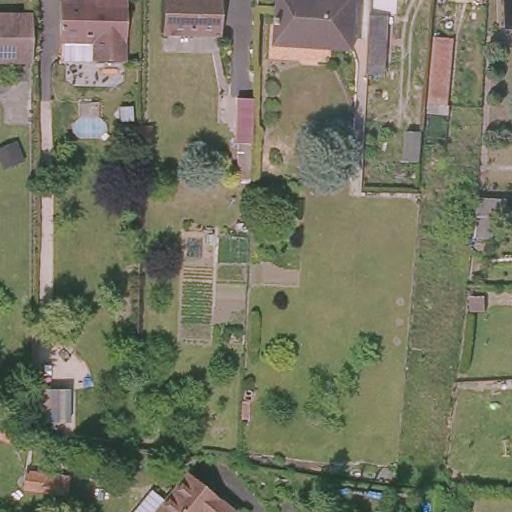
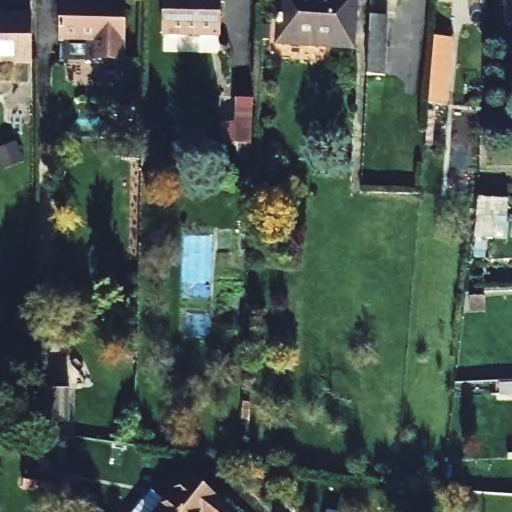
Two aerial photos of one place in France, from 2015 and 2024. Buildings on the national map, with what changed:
unchanged [(60,59),(61,0),(125,0),(125,59),(60,59)]
unchanged [(162,35),(162,0),(217,0),(217,37),(162,35)]
unchanged [(276,40),(282,0),(358,0),(352,50),(276,40)]
unchanged [(511,25),(511,0),(512,0),(512,24),(511,25)]
unchanged [(30,59),(30,62),(0,62),(0,13),(31,13),(30,59)]
unchanged [(385,18),(382,76),(366,77),(367,68),(367,64),(370,17),(385,18)]
unchanged [(453,32),(447,102),(428,101),(434,32),(453,32)]
unchanged [(252,114),(252,137),(236,136),(237,104),(252,104),(252,114)]
unchanged [(69,478),(67,495),(27,490),(23,489),(25,472),(69,478)]
unchanged [(237,512),(236,512),(142,512),(152,497),(167,507),(185,478),(237,512)]

